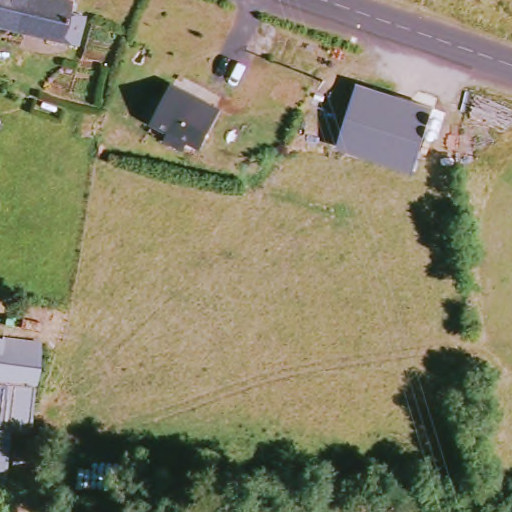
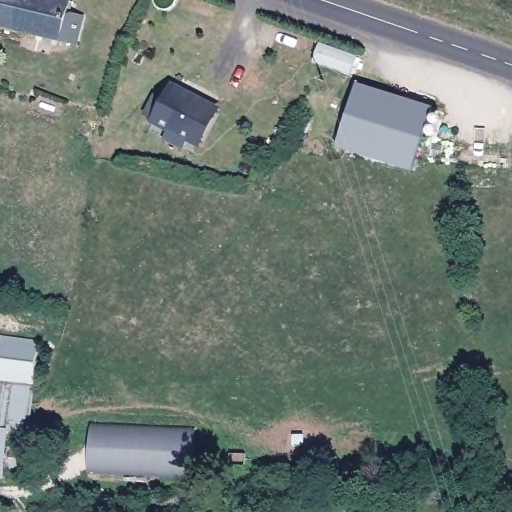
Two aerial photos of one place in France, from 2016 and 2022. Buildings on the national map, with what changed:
unchanged [(67,16),(82,20),(75,47),(0,25),(0,0),(69,0),(67,16)]
unchanged [(340,147),(360,85),(435,109),(415,172),(340,147)]
unchanged [(162,140),(167,130),(152,122),(165,87),(210,107),(195,143),(182,137),(177,148),(162,140)]
unchanged [(40,347),(22,432),(0,428),(0,339),(40,347)]
new [(91,426),(192,430),(191,477),(90,475),(91,426)]
new [(9,429),(5,480),(0,479),(0,428),(9,429)]

